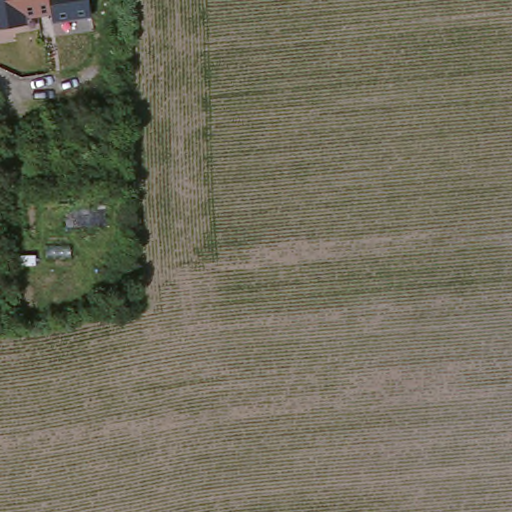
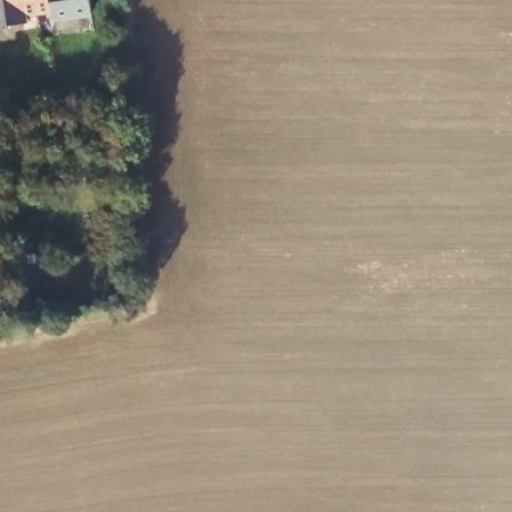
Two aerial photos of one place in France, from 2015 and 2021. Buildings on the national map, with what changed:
unchanged [(93,15),(0,26),(0,0),(91,0),(93,15)]

